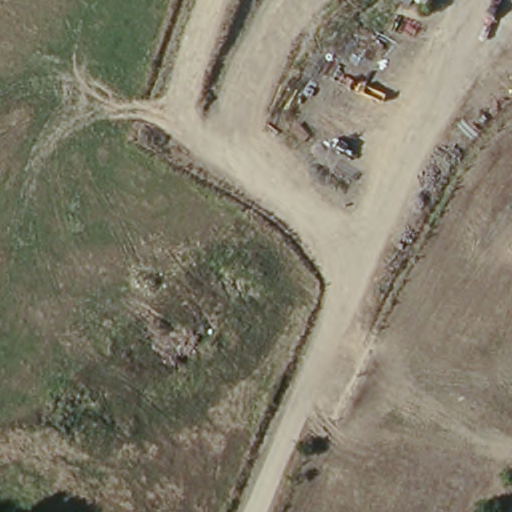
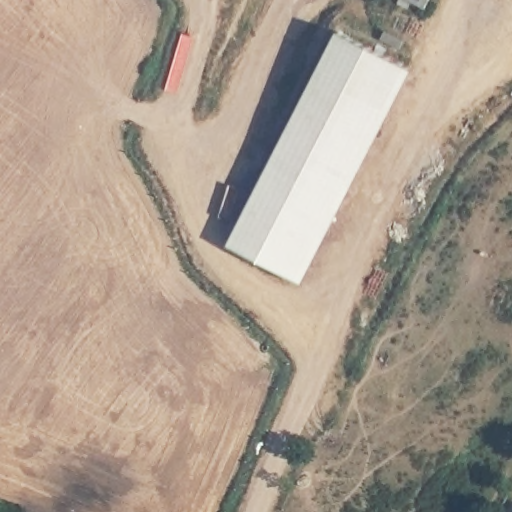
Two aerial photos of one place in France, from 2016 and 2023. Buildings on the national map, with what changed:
unchanged [(430,11),(407,0),(435,0),(430,11)]
new [(303,284),(231,247),(341,34),(414,72),(303,284)]

